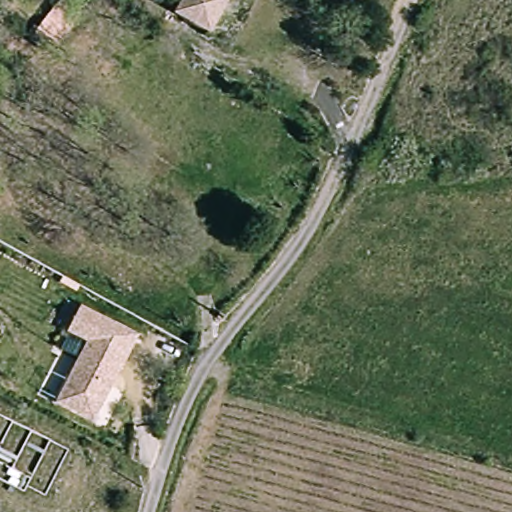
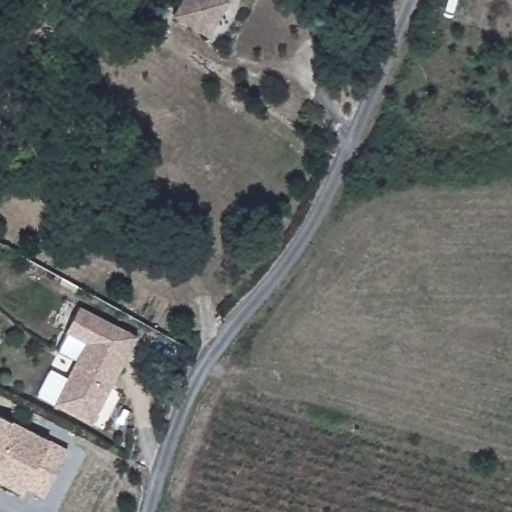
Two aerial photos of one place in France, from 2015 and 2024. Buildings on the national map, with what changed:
unchanged [(225,0),(208,32),(174,13),(181,0),(225,0)]
unchanged [(53,4),(71,16),(43,54),(26,41),(53,4)]
unchanged [(83,343),(62,333),(75,307),(111,323),(135,333),(121,364),(96,422),(56,406),(83,343)]
new [(12,420),(50,439),(69,449),(44,497),(26,488),(23,494),(0,483),(0,415),(12,420)]

